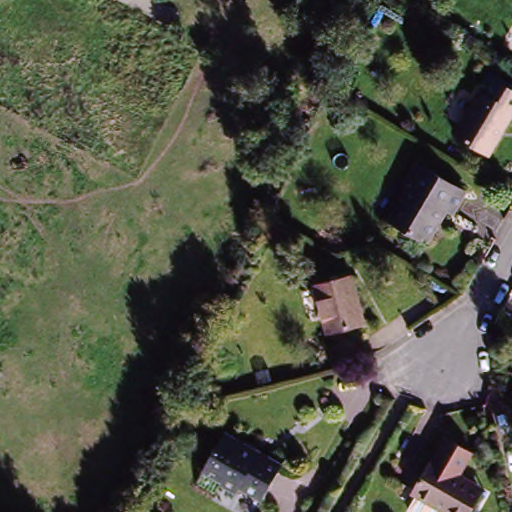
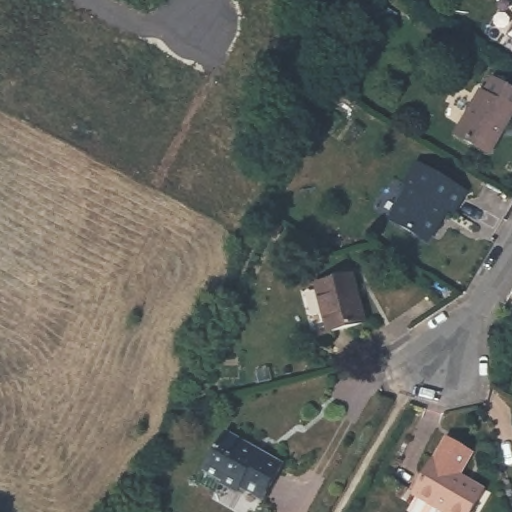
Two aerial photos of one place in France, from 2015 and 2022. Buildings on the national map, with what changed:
unchanged [(362,37),(372,42),(366,56),(356,52),(362,37)]
unchanged [(483,95),(493,81),(512,92),(512,117),(489,157),(455,136),(481,94),(483,95)]
unchanged [(453,214),(447,212),(428,243),(390,221),(409,187),(404,184),(416,164),(421,167),(464,195),(453,214)]
unchanged [(358,277),(369,324),(332,332),(321,286),(358,277)]
unchanged [(490,487),(476,512),(449,512),(418,493),(442,452),(443,453),(458,427),(484,443),(469,468),(476,472),(493,483),(490,487)]
unchanged [(227,432),(241,438),(238,442),(279,466),(261,496),(241,483),(236,489),(222,480),(218,488),(198,477),(227,432)]

